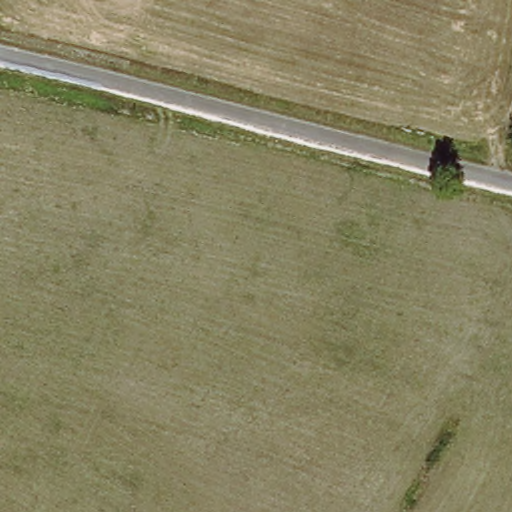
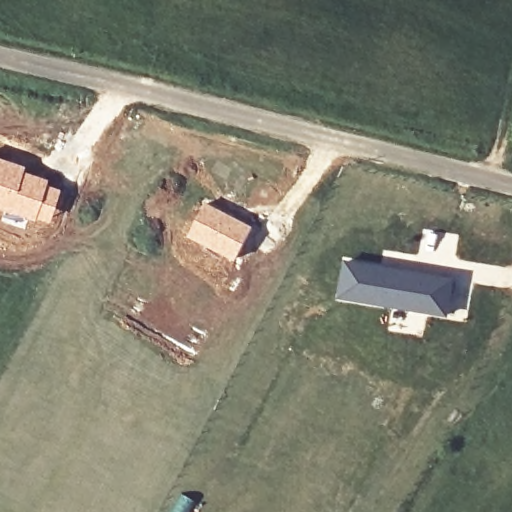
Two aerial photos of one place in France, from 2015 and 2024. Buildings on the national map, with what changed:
new [(25,164),(24,167),(49,177),(47,182),(60,187),(49,220),(27,214),(25,218),(9,213),(6,219),(4,218),(4,217),(2,216),(4,208),(0,207),(0,156),(25,164)]
new [(342,257),(424,267),(457,274),(449,318),(334,298),(342,257)]

